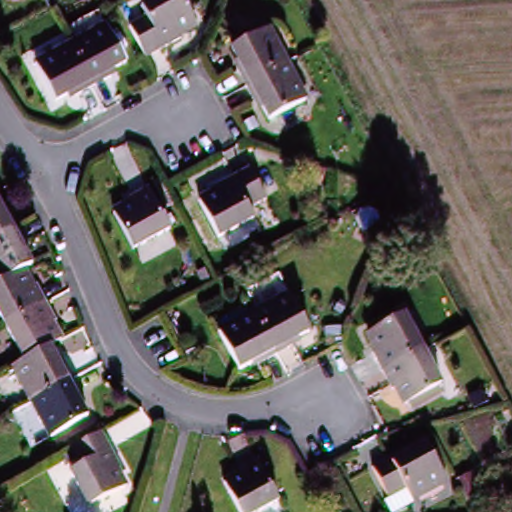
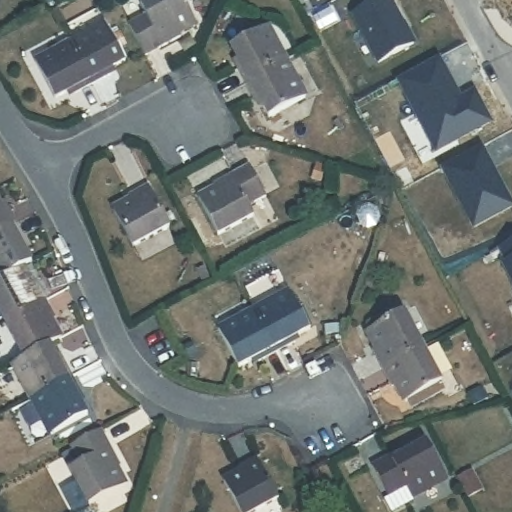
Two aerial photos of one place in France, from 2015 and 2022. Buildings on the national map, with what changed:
unchanged [(130,26),(150,16),(145,7),(158,0),(183,0),(197,25),(184,32),(187,38),(148,59),(130,26)]
new [(404,21),(405,20),(415,42),(378,63),(350,14),(374,0),(392,0),(404,21)]
unchanged [(236,58),(245,53),(237,39),(267,22),(287,60),(249,81),(236,58)]
unchanged [(110,47),(117,43),(125,57),(118,61),(121,66),(104,76),(105,79),(92,87),(69,43),(100,27),(110,47)]
unchanged [(92,87),(74,97),(70,92),(52,102),(30,64),(69,43),(92,87)]
new [(461,95),(475,87),(494,122),(436,155),(396,80),(439,56),(461,95)]
unchanged [(282,118),(275,106),(273,107),(265,93),(257,97),(249,81),(287,60),(304,90),(298,93),(305,106),(282,118)]
new [(512,200),(512,212),(477,230),(445,172),(485,151),(512,200)]
unchanged [(325,166),(321,181),(295,174),(300,159),(325,166)]
unchanged [(186,196),(234,170),(250,200),(238,208),(244,217),(209,236),(186,196)]
unchanged [(167,233),(133,251),(110,211),(130,200),(128,195),(144,190),(167,233)]
unchanged [(10,229),(0,235),(0,212),(10,229)]
unchanged [(10,229),(16,242),(10,245),(22,268),(16,272),(0,281),(0,235),(10,229)]
new [(512,279),(506,268),(510,266),(502,252),(512,247),(512,279)]
unchanged [(0,324),(0,281),(16,272),(24,285),(27,283),(39,305),(1,326),(0,324)]
unchanged [(285,289),(305,324),(291,332),(295,338),(278,347),(255,305),(285,289)]
unchanged [(39,305),(46,318),(42,320),(54,340),(45,344),(19,359),(1,326),(39,305)]
unchanged [(278,347),(258,358),(253,350),(236,359),(217,326),(255,305),(278,347)]
unchanged [(366,347),(375,343),(367,330),(405,309),(421,342),(376,365),(366,347)]
unchanged [(412,404),(407,395),(402,398),(393,382),(387,385),(376,365),(421,342),(441,376),(445,385),(412,404)]
unchanged [(192,343),(198,353),(187,359),(182,348),(192,343)]
unchanged [(25,398),(7,365),(19,359),(45,344),(54,359),(57,357),(67,375),(25,398)]
unchanged [(77,394),(73,396),(80,410),(42,431),(25,398),(67,375),(77,394)]
unchanged [(467,392),(483,387),(488,400),(472,405),(467,392)]
unchanged [(121,464),(116,466),(127,485),(91,505),(73,471),(82,466),(72,449),(104,432),(121,464)]
unchanged [(393,512),(386,499),(391,497),(375,467),(409,447),(412,453),(428,444),(447,479),(414,496),(416,500),(395,512),(393,512)]
unchanged [(470,463),(481,483),(463,493),(452,473),(470,463)]
unchanged [(241,477),(239,472),(255,464),(276,504),(260,512),(240,512),(225,485),(241,477)]

